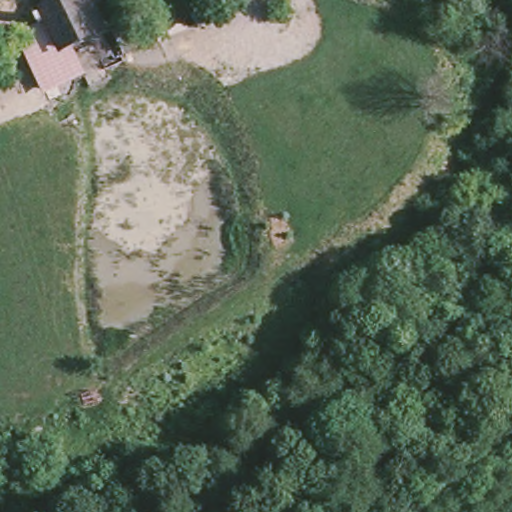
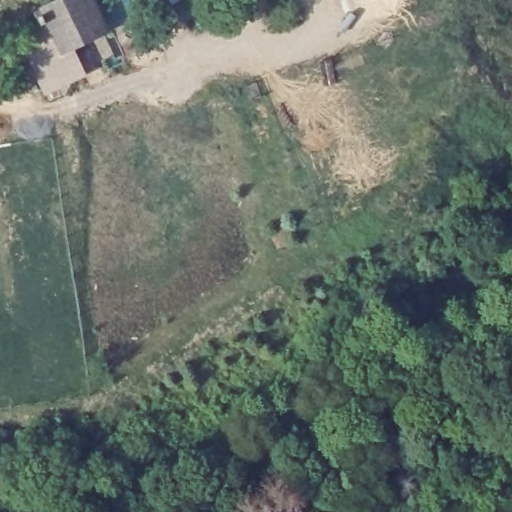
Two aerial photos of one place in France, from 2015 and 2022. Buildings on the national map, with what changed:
unchanged [(44,22),(37,7),(53,0),(93,0),(107,30),(75,47),(85,72),(55,87),(26,29),(44,22)]
unchanged [(142,9),(138,0),(160,0),(142,9)]

